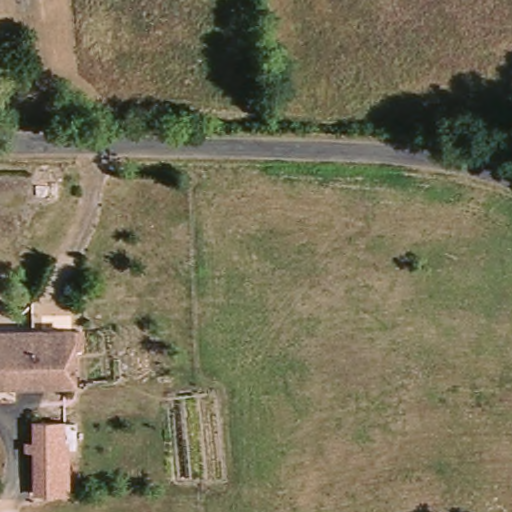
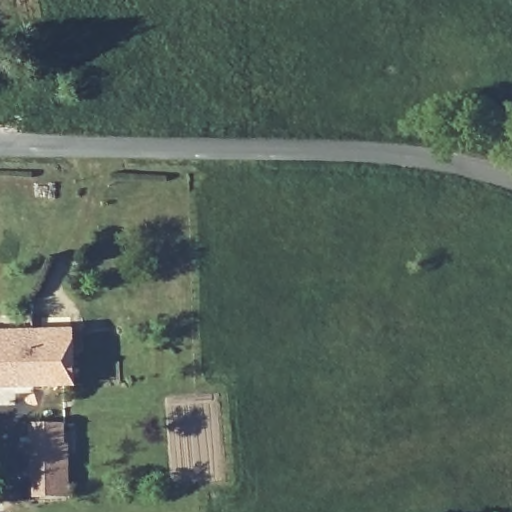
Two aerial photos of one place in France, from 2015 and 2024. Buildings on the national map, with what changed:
unchanged [(78,356),(66,356),(67,387),(0,388),(0,339),(77,338),(78,356)]
unchanged [(34,494),(36,423),(75,426),(76,447),(66,449),(65,495),(34,494)]

